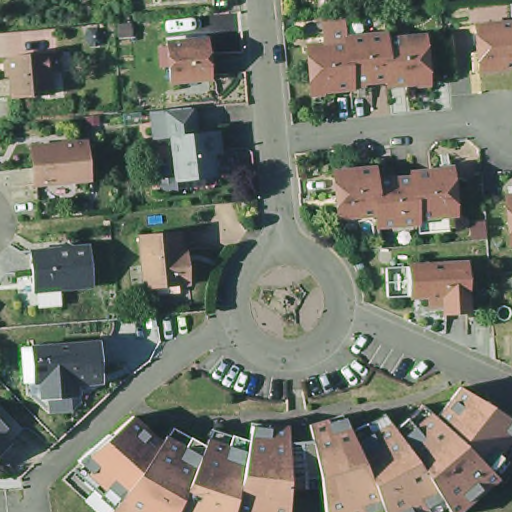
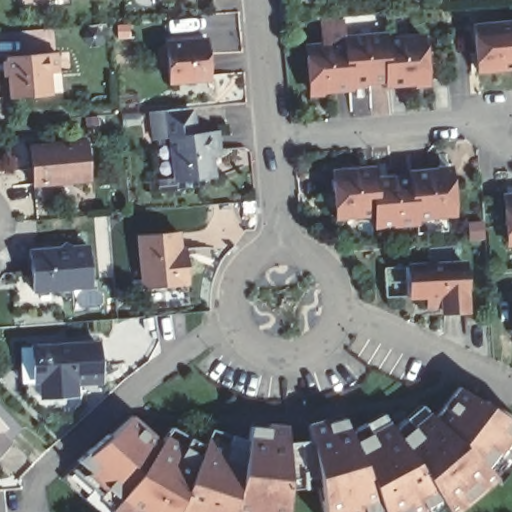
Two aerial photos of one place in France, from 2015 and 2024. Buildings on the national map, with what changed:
unchanged [(476,76),(472,31),(510,27),(512,52),(512,72),(476,76)]
unchanged [(510,27),(512,27),(512,52),(510,27)]
unchanged [(388,40),(388,44),(388,45),(387,45),(391,85),(390,85),(354,88),(353,88),(350,49),(348,49),(348,43),(388,40)]
unchanged [(390,85),(391,85),(387,45),(388,45),(426,42),(430,87),(391,90),(390,85)]
unchanged [(209,47),(212,87),(172,89),(168,51),(209,47)]
unchanged [(315,97),(310,52),(348,49),(350,49),(353,88),(354,88),(354,93),(315,97)]
unchanged [(8,100),(5,60),(54,56),(55,75),(47,75),(49,97),(8,100)]
unchanged [(193,107),(196,136),(175,138),(152,139),(148,111),(193,107)]
unchanged [(175,138),(196,136),(220,134),(222,155),(213,156),(216,179),(179,182),(175,138)]
unchanged [(37,186),(32,147),(87,144),(90,182),(82,182),(37,186)]
unchanged [(372,174),(373,181),(372,182),(375,209),(375,214),(374,214),(336,217),(332,172),(372,169),(372,174)]
unchanged [(448,170),(452,214),(415,217),(413,217),(410,178),(409,178),(410,173),(448,170)]
unchanged [(374,214),(375,214),(375,209),(372,182),(373,181),(409,178),(410,178),(413,217),(415,217),(415,222),(375,226),(374,214)]
unchanged [(507,249),(503,204),(512,203),(512,248),(507,249)]
unchanged [(145,287),(140,237),(180,234),(180,250),(186,249),(187,260),(189,284),(145,287)]
unchanged [(40,292),(36,252),(93,247),(97,287),(40,292)]
unchanged [(468,263),(470,311),(447,312),(446,305),(432,306),(432,296),(414,297),(412,266),(468,263)]
unchanged [(98,377),(73,380),(75,394),(40,397),(38,382),(33,383),(33,376),(31,347),(35,347),(95,342),(98,377)]
unchanged [(165,442),(175,427),(207,446),(215,428),(251,440),(255,422),(291,426),(291,442),(313,440),(311,425),(346,415),(353,432),(386,413),(396,428),(425,405),(438,417),(462,387),(505,413),(506,411),(512,414),(512,475),(505,483),(500,478),(460,512),(453,512),(445,501),(424,512),(386,512),(384,512),(328,512),(323,486),(290,489),(290,512),(103,512),(65,479),(78,468),(83,462),(81,461),(96,447),(98,450),(135,416),(165,442)]
unchanged [(0,449),(0,435),(7,442),(0,449)]

